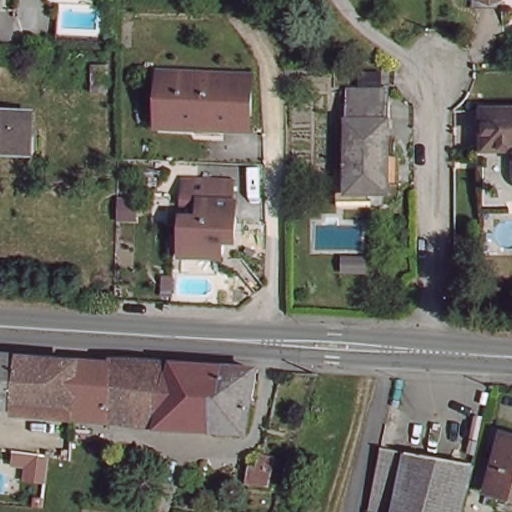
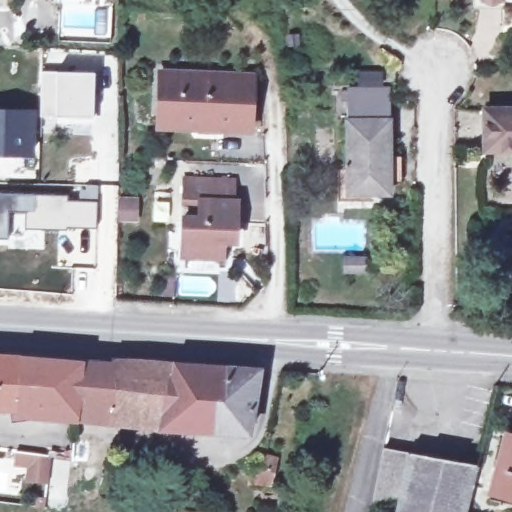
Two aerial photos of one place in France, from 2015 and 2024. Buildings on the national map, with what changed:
unchanged [(499,0),(499,6),(473,5),(472,0),(499,0)]
unchanged [(198,68),(198,73),(246,74),(245,125),(226,125),(226,131),(196,130),(196,122),(158,121),(158,69),(198,68)]
new [(55,73),(93,75),(91,117),(53,115),(41,114),(42,71),(55,73)]
unchanged [(344,91),(383,91),(385,187),(346,187),(344,91)]
unchanged [(30,154),(0,152),(0,110),(31,111),(30,154)]
unchanged [(496,113),(512,113),(512,157),(496,156),(496,113)]
unchanged [(195,206),(194,187),(241,186),(242,222),(226,222),(226,243),(241,243),(241,263),(181,262),(180,206),(195,206)]
new [(24,228),(24,213),(7,212),(4,238),(0,238),(0,194),(66,196),(66,202),(95,203),(94,228),(24,228)]
unchanged [(66,364),(65,418),(0,410),(0,360),(39,362),(66,364)]
unchanged [(66,364),(90,365),(108,366),(171,369),(243,373),(238,441),(159,435),(160,433),(99,426),(65,423),(65,418),(66,364)]
unchanged [(512,445),(512,498),(489,492),(504,443),(512,445)]
unchanged [(407,455),(406,459),(394,512),(391,512),(362,505),(366,490),(379,444),(408,451),(407,455)]
new [(18,450),(51,454),(49,480),(29,478),(30,464),(17,462),(18,450)]
unchanged [(269,457),(269,486),(253,484),(261,456),(269,457)]
unchanged [(406,459),(469,475),(460,512),(394,512),(406,459)]

